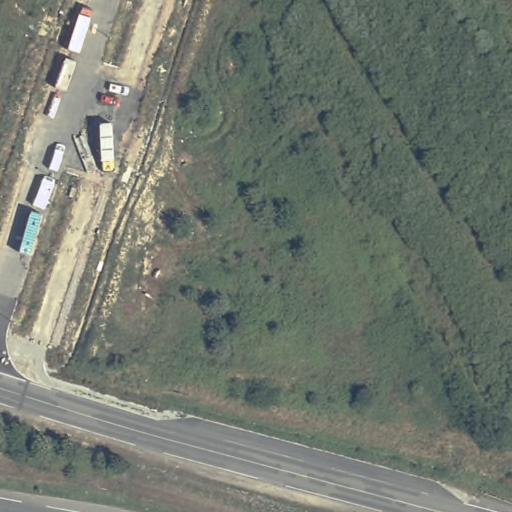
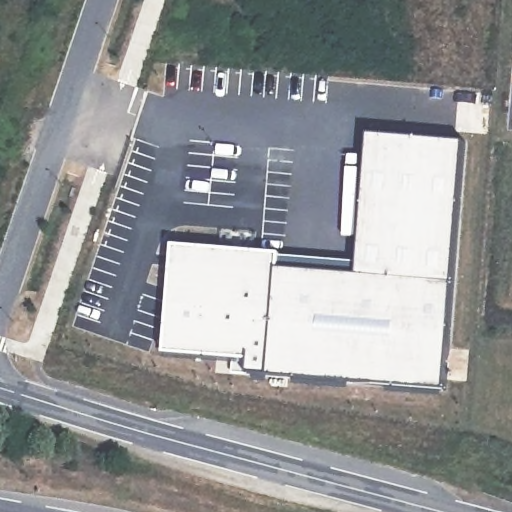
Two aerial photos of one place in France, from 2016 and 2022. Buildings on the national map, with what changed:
new [(172,245),(283,253),(283,257),(358,262),(370,134),(463,142),(445,391),(269,377),(270,376),(250,375),(250,362),(164,356),(172,245)]

